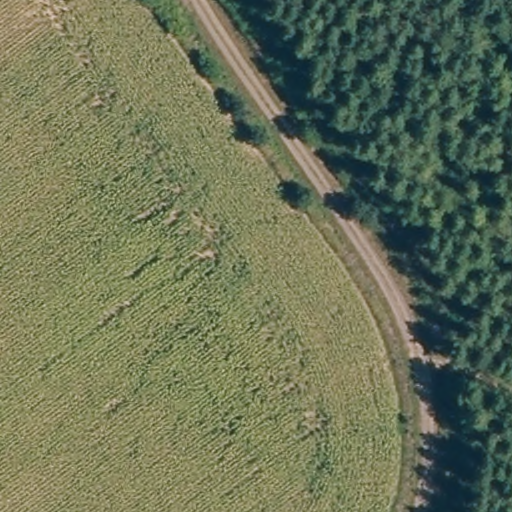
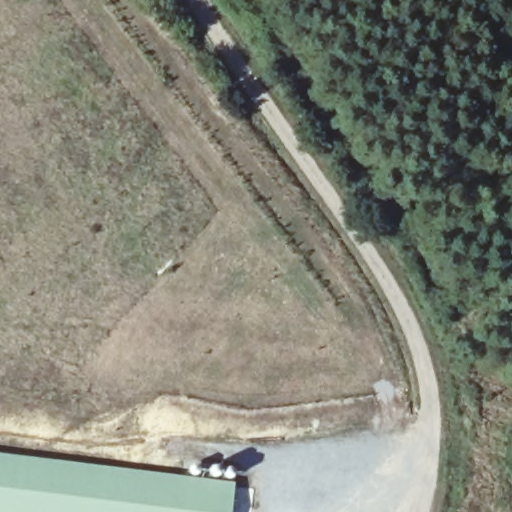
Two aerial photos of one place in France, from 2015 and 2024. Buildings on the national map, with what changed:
new [(232,512),(0,512),(0,453),(236,482),(232,512)]

